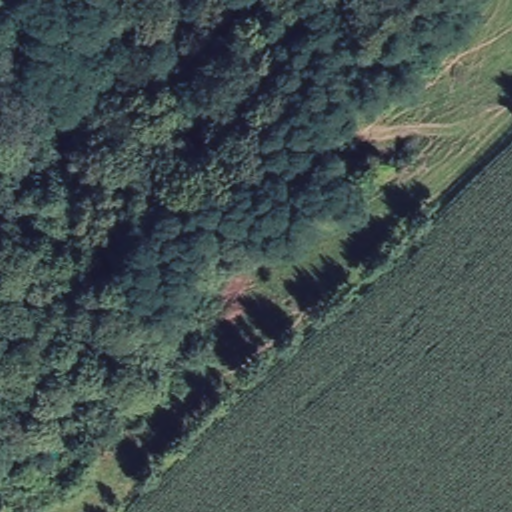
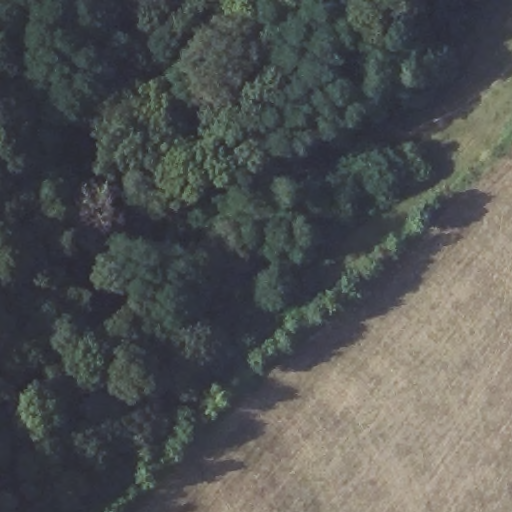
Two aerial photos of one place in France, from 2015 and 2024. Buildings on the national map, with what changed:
[]

